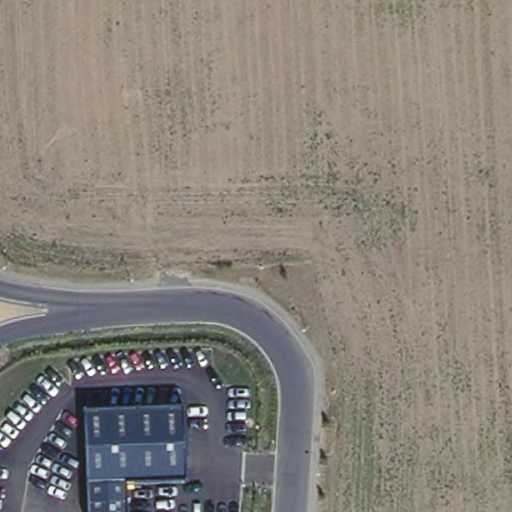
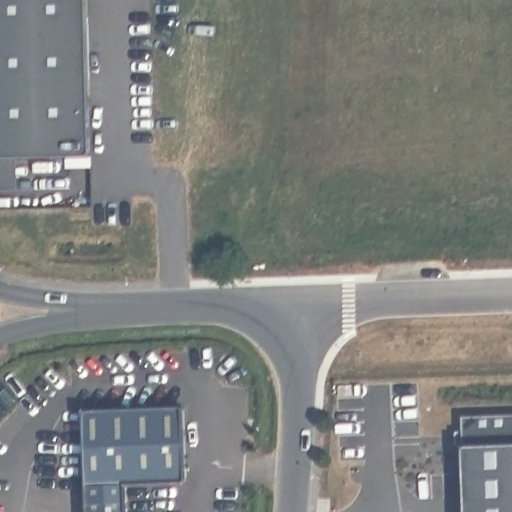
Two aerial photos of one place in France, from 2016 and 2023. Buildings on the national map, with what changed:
new [(17,155),(18,192),(0,192),(0,0),(93,0),(97,153),(17,155)]
unchanged [(125,485),(125,512),(87,512),(82,413),(184,409),(187,482),(125,485)]
new [(512,512),(464,512),(462,422),(512,419),(512,512)]

